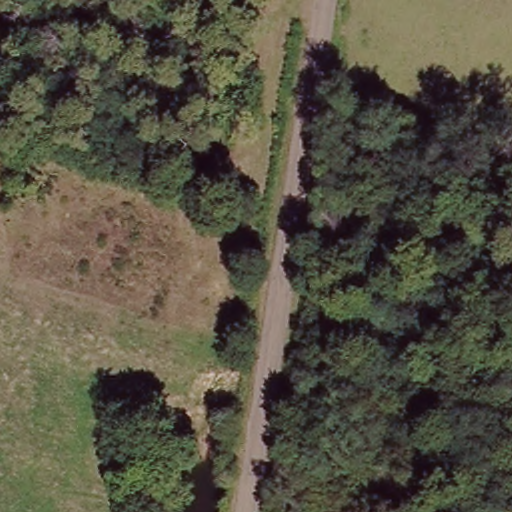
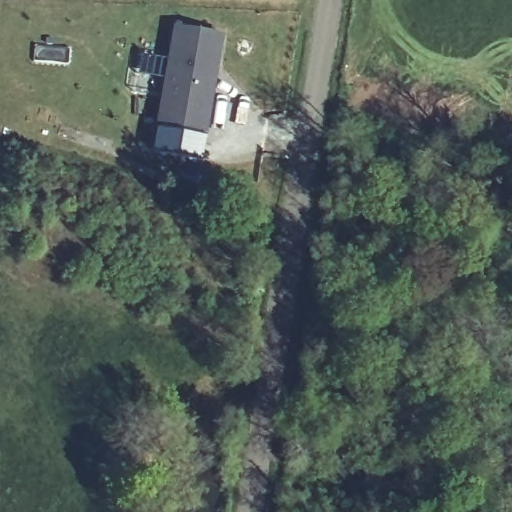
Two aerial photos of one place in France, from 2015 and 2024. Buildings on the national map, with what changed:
new [(205,160),(154,154),(174,25),(225,33),(205,160)]

